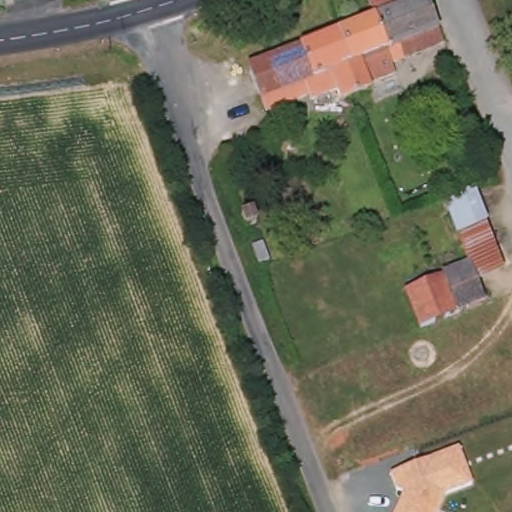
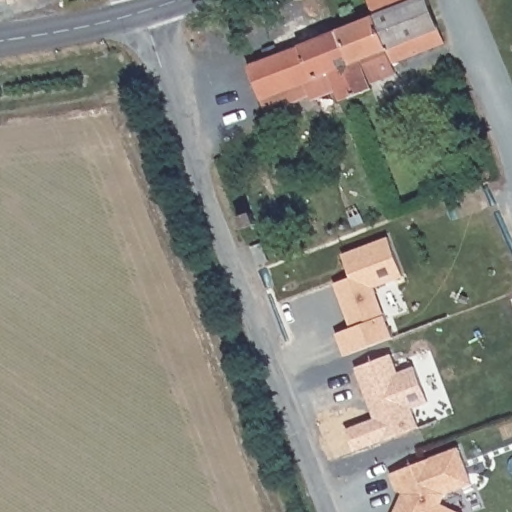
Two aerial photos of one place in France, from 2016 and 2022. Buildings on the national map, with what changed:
unchanged [(370,0),(429,0),(445,40),(395,63),(398,71),(371,83),(345,24),(375,12),(370,0)]
unchanged [(345,24),(371,83),(374,89),(356,95),(331,30),(345,24)]
unchanged [(356,95),(345,101),(339,91),(315,101),(311,95),(271,112),(251,65),(331,30),(356,95)]
demolished [(418,327),(401,289),(439,274),(437,271),(465,260),(441,197),(471,186),(486,224),(485,225),(503,272),(478,282),(485,302),(418,327)]
new [(375,287),(385,315),(392,339),(344,357),(336,333),(351,328),(335,283),(351,277),(342,254),(387,236),(402,277),(375,287)]
new [(429,402),(413,408),(420,427),(355,451),(346,429),(375,418),(355,366),(392,354),(399,371),(415,366),(429,402)]
unchanged [(471,485),(445,495),(438,512),(392,512),(398,496),(388,472),(457,447),(471,485)]

